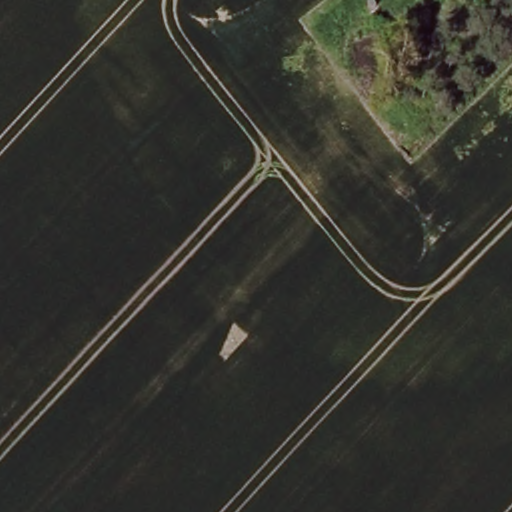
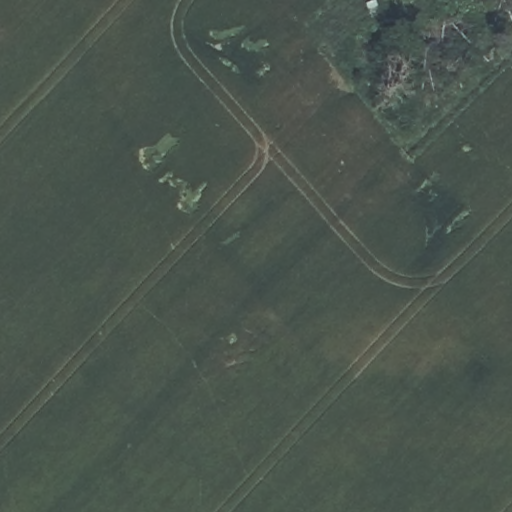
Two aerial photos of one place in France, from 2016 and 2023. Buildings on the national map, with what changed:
unchanged [(376,2),(377,9),(371,10),(369,3),(376,2)]

